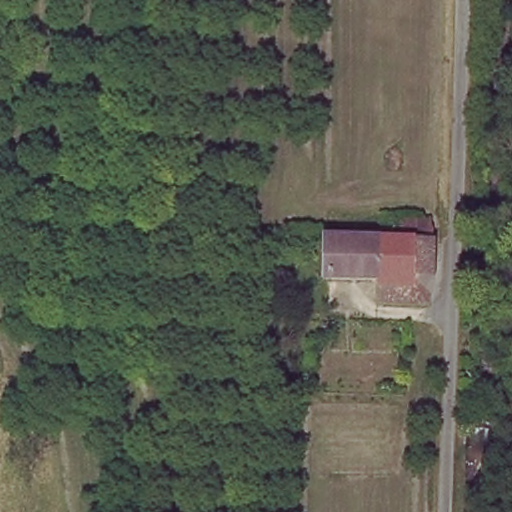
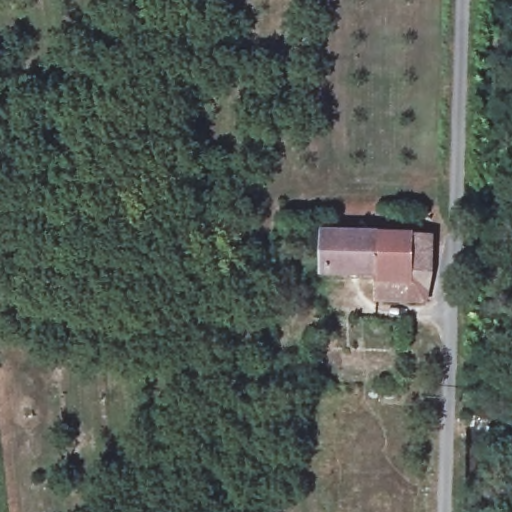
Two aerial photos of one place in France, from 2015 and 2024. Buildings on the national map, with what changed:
unchanged [(369,278),(324,277),(325,238),(401,240),(403,217),(435,219),(434,240),(432,280),(369,278)]
unchanged [(432,280),(431,303),(369,301),(369,278),(432,280)]

